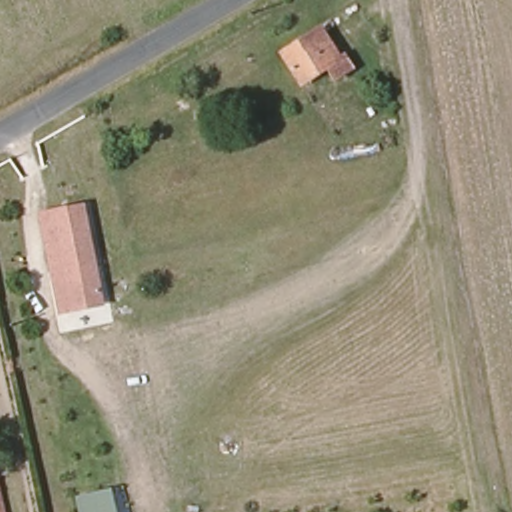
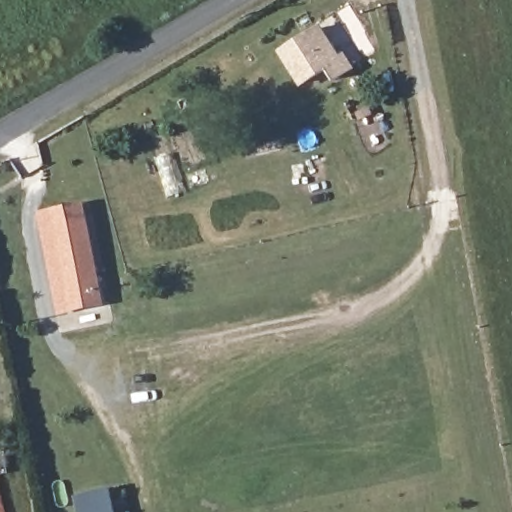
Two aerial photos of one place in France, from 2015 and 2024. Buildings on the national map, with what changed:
unchanged [(322,24),(342,54),(348,50),(359,62),(337,76),(329,62),(303,82),(283,50),(322,24)]
unchanged [(58,315),(38,213),(86,207),(105,307),(58,315)]
unchanged [(0,485),(6,512),(0,512),(0,485)]
unchanged [(109,495),(112,512),(84,512),(81,501),(109,495)]

